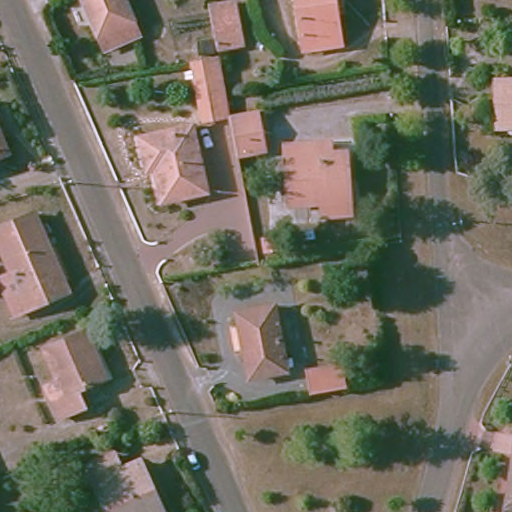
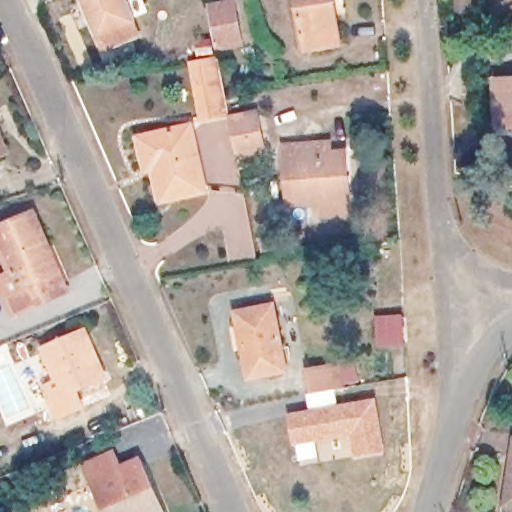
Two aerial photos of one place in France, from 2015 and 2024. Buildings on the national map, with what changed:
unchanged [(99,50),(78,0),(124,0),(138,34),(99,50)]
unchanged [(296,0),(332,0),(337,45),(303,50),(296,0)]
unchanged [(198,54),(213,51),(206,16),(229,11),(237,49),(214,54),(216,66),(221,94),(194,99),(189,70),(201,69),(198,54)]
unchanged [(494,120),(494,81),(512,81),(512,128),(494,129),(494,120)]
unchanged [(229,129),(252,125),(262,164),(237,169),(229,129)]
unchanged [(200,195),(159,202),(151,161),(142,163),(139,140),(189,131),(200,195)]
unchanged [(346,226),(323,227),(322,213),(307,214),(289,214),(287,158),(304,158),(314,157),(314,153),(334,151),(336,164),(344,165),(346,226)]
unchanged [(0,160),(0,152),(3,159),(0,160)]
unchanged [(278,233),(258,234),(257,205),(276,204),(278,233)]
unchanged [(33,285),(40,301),(16,311),(0,275),(0,251),(5,249),(0,238),(0,226),(32,212),(60,274),(33,285)]
unchanged [(284,377),(249,383),(236,318),(272,312),(284,377)]
new [(374,314),(404,314),(404,347),(374,348),(374,314)]
unchanged [(106,379),(78,393),(84,411),(52,424),(39,392),(52,386),(40,355),(89,334),(106,379)]
unchanged [(308,379),(342,373),(346,396),(313,401),(308,379)]
new [(386,453),(354,458),(350,436),(294,446),(288,414),(377,399),(386,453)]
unchanged [(93,479),(85,464),(112,453),(118,467),(136,458),(161,512),(108,512),(93,479)]
unchanged [(512,458),(512,512),(503,512),(512,458)]

